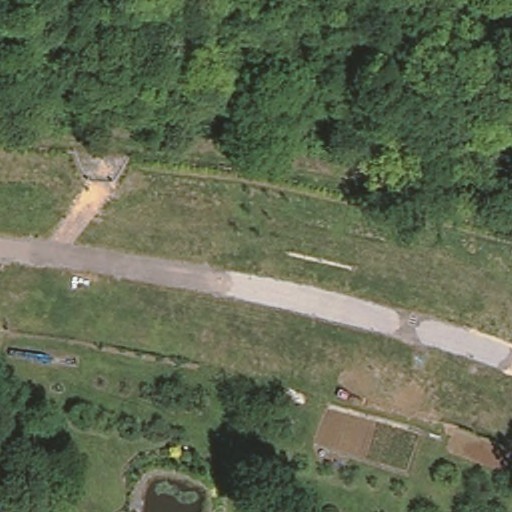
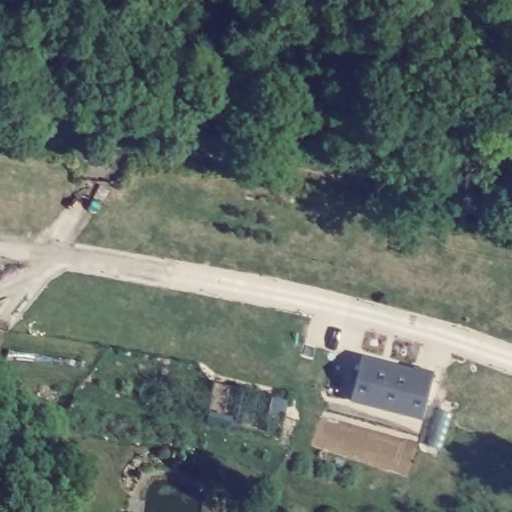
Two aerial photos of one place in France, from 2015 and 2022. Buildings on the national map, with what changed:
new [(433,371),(424,417),(353,401),(362,355),(433,371)]

